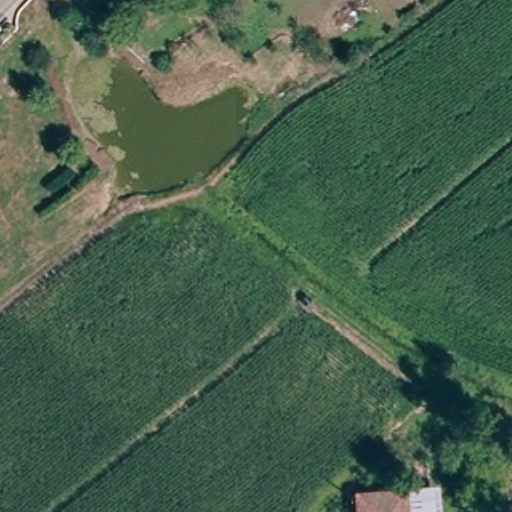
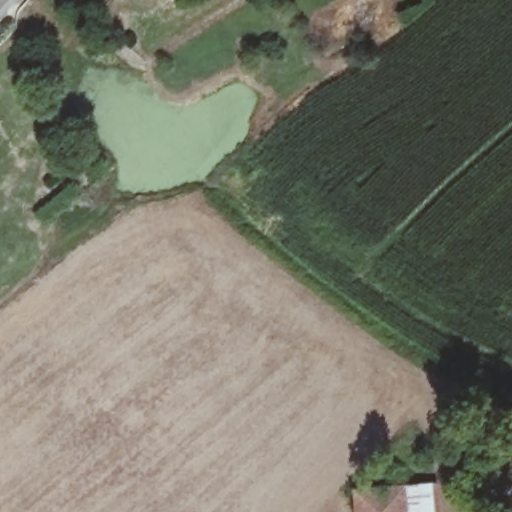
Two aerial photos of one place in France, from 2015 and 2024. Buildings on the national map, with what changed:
unchanged [(368,490),(415,487),(417,512),(366,512),(364,490),(368,490)]

